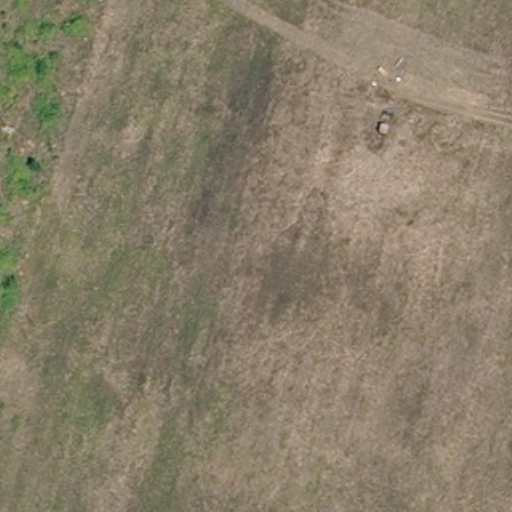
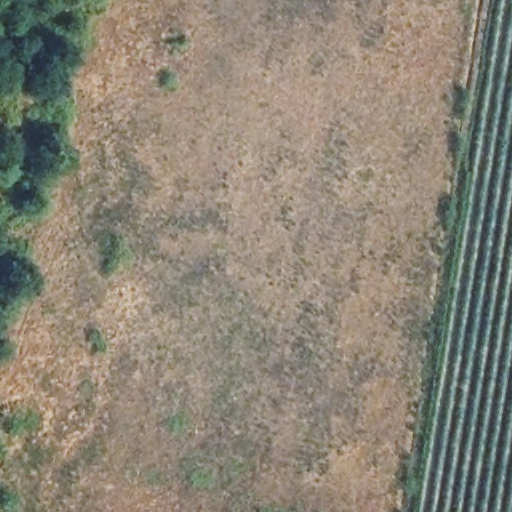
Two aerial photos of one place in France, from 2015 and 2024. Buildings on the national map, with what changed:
[]

